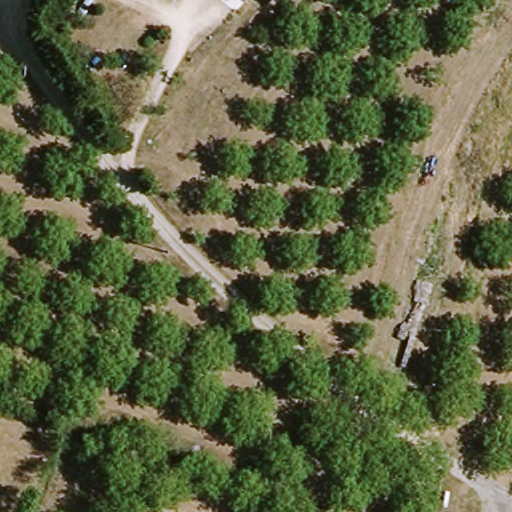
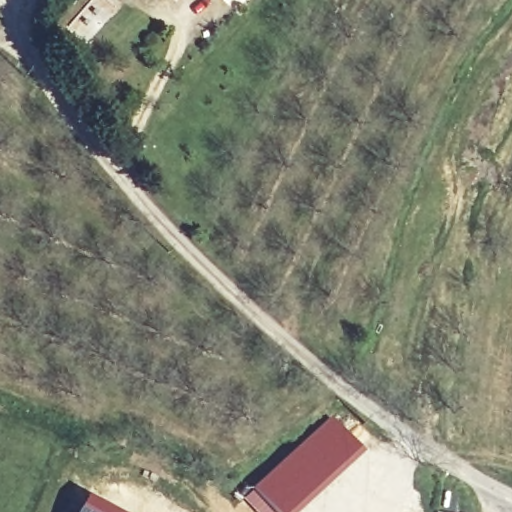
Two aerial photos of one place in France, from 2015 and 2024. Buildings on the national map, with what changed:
new [(301,512),(272,512),(251,490),(329,420),(365,455),(301,512)]
new [(85,497),(112,512),(77,512),(85,497)]

